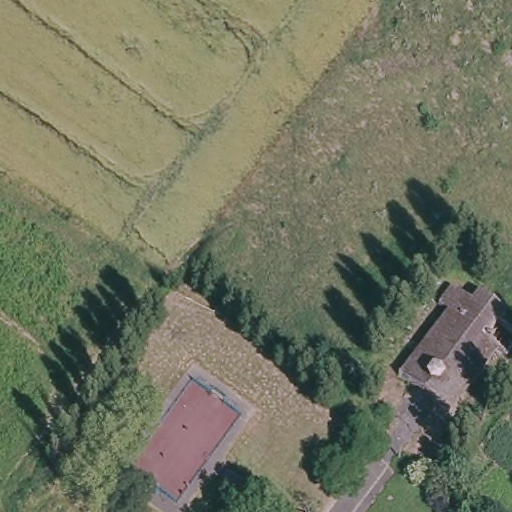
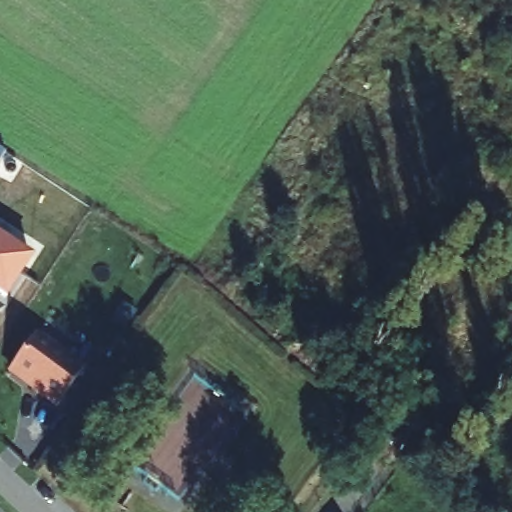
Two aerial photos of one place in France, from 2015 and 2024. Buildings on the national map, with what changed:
new [(3,153),(0,159),(0,151),(3,153)]
new [(0,297),(0,238),(33,257),(5,300),(0,297)]
demolished [(505,303),(498,311),(512,323),(512,337),(506,345),(497,338),(449,401),(399,363),(446,298),(438,292),(451,275),(471,291),(479,281),(505,303)]
new [(31,388),(8,370),(34,335),(82,372),(53,410),(28,391),(31,388)]

